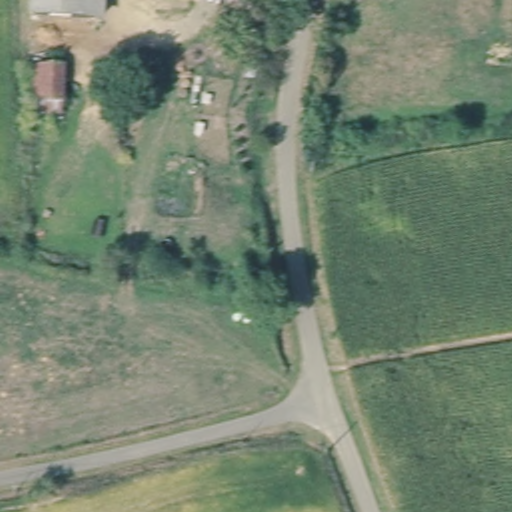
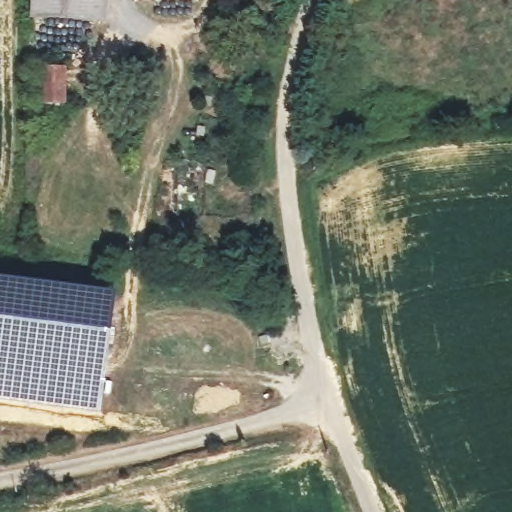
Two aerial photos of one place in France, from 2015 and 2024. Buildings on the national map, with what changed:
unchanged [(37,15),(37,0),(98,0),(98,18),(37,15)]
unchanged [(66,115),(30,114),(32,64),(69,68),(66,115)]
new [(100,414),(0,401),(0,276),(114,292),(100,414)]

